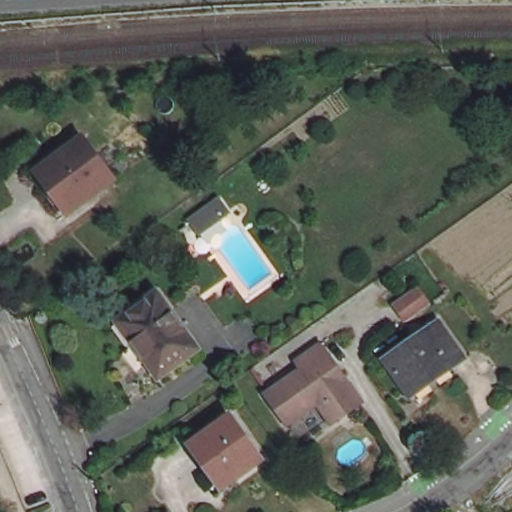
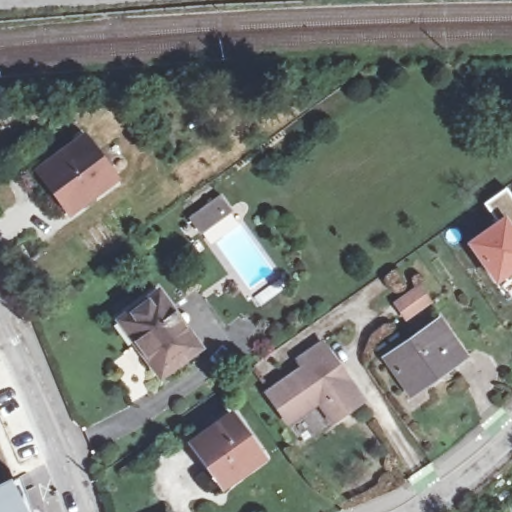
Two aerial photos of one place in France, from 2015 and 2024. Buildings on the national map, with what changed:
unchanged [(122,180),(77,215),(69,205),(63,210),(39,178),(90,139),(102,154),(122,180)]
new [(497,286),(464,242),(493,220),(482,203),(505,185),(512,195),(512,224),(511,225),(512,226),(512,275),(497,286)]
unchanged [(242,200),(212,221),(204,210),(233,189),(242,200)]
unchanged [(420,283),(430,297),(407,313),(397,300),(420,283)]
unchanged [(202,350),(165,379),(140,343),(125,323),(132,320),(163,298),(202,350)]
unchanged [(469,356),(417,393),(392,357),(445,321),(469,356)]
unchanged [(304,376),(299,369),(323,352),(363,411),(339,427),(325,407),(288,432),(267,402),(304,376)]
unchanged [(227,484),(197,443),(235,413),(266,455),(227,484)]

